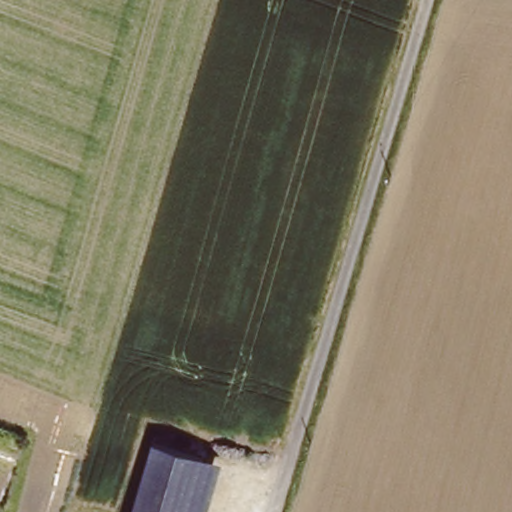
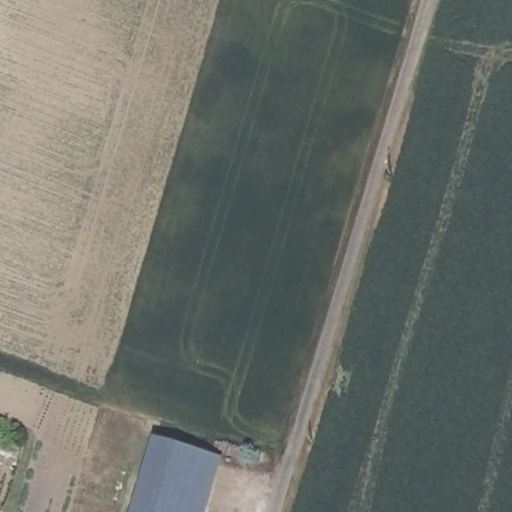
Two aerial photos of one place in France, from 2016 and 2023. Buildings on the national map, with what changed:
unchanged [(216,512),(137,512),(155,452),(227,473),(216,512)]

